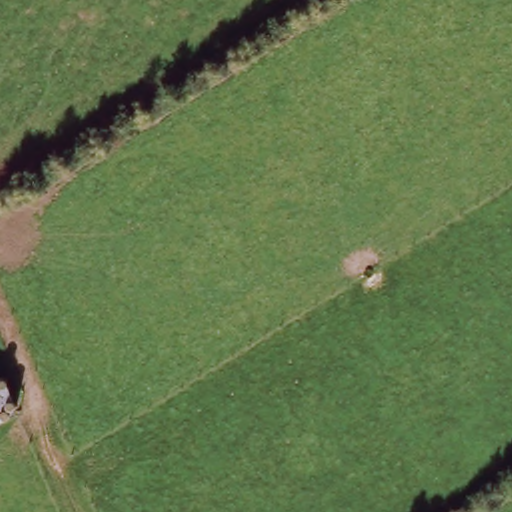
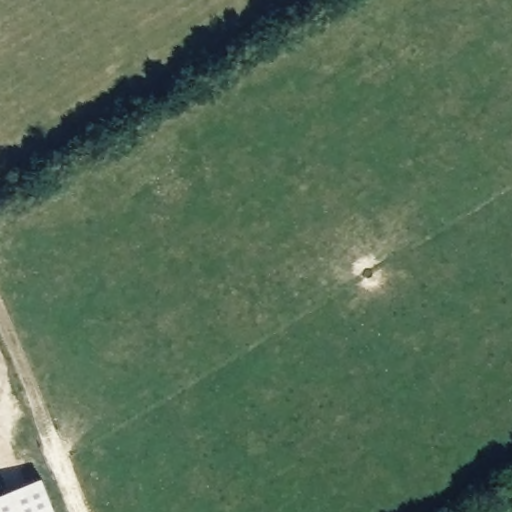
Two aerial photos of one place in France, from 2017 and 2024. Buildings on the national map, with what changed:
new [(56,512),(0,512),(0,494),(42,477),(56,512)]

